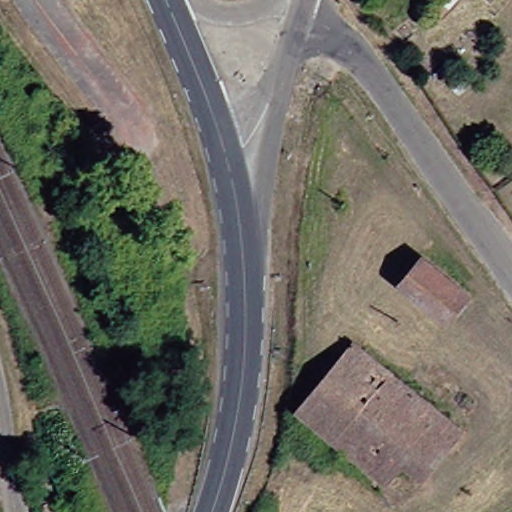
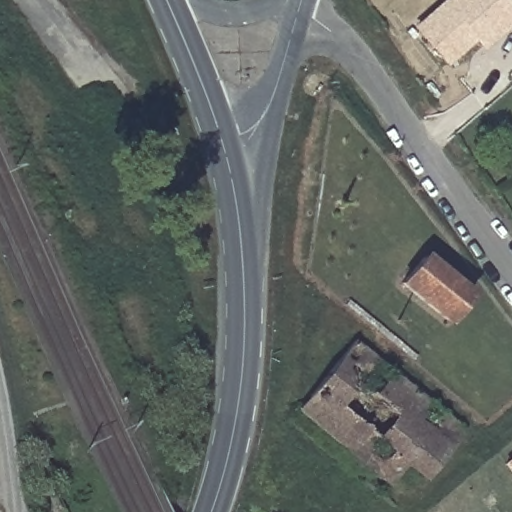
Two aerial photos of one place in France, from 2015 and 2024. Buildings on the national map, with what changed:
new [(473,41),(444,65),(411,25),(441,0),(506,0),(512,7),(512,25),(481,50),(473,41)]
unchanged [(440,314),(395,278),(416,252),(461,289),(440,314)]
unchanged [(293,410),(350,341),(457,428),(417,480),(399,465),(383,486),(293,410)]
new [(512,456),(512,477),(502,464),(512,456)]

